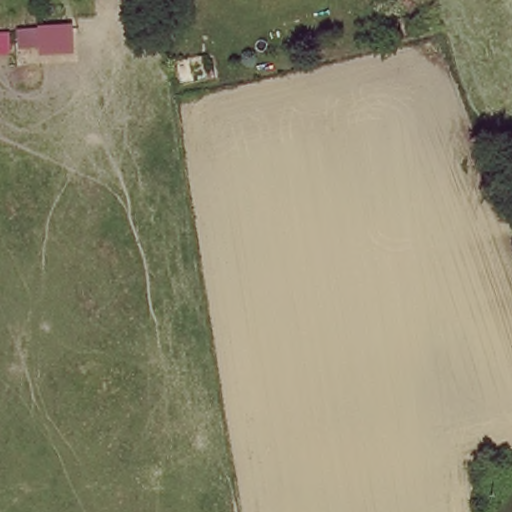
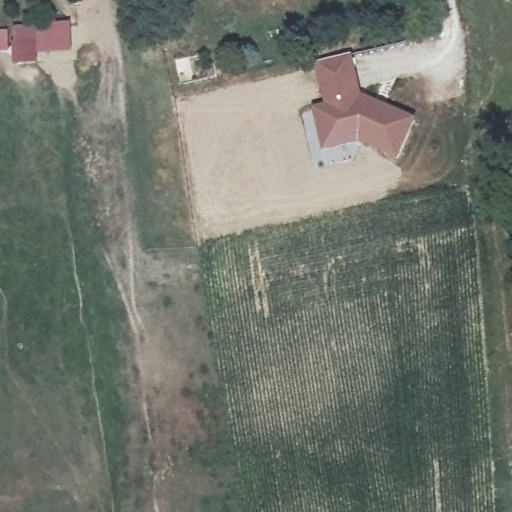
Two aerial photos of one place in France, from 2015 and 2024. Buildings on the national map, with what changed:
unchanged [(70,50),(31,54),(30,43),(13,47),(9,27),(66,20),(70,50)]
new [(350,54),(361,97),(415,121),(396,160),(359,142),(322,151),(311,108),(323,104),(313,62),(350,54)]

